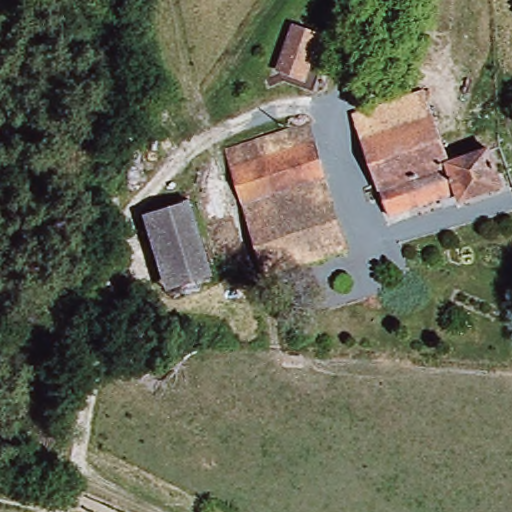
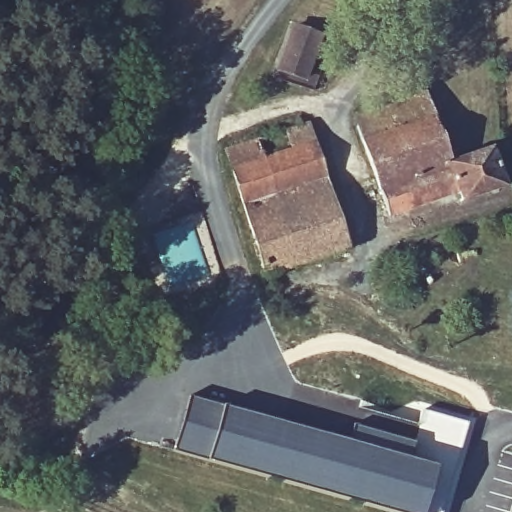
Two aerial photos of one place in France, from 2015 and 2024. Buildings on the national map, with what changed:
new [(302,81),(277,71),(294,24),(319,33),(302,81)]
unchanged [(366,112),(427,92),(438,122),(366,146),(361,130),(356,115),(366,112)]
unchanged [(225,149),(310,119),(349,241),(267,272),(225,149)]
unchanged [(366,146),(438,122),(453,162),(381,185),(366,146)]
unchanged [(453,162),(489,151),(500,186),(461,198),(460,193),(390,216),(381,185),(453,162)]
unchanged [(169,282),(145,215),(187,198),(203,242),(213,267),(206,269),(169,282)]
new [(346,441),(407,460),(434,468),(421,512),(376,512),(170,452),(188,395),(346,441)]
new [(421,407),(469,421),(462,450),(431,441),(433,433),(415,428),(421,407)]
new [(351,425),(412,443),(407,460),(346,441),(351,425)]
new [(407,460),(412,443),(415,428),(433,433),(431,441),(462,450),(461,454),(464,455),(448,512),(421,512),(434,468),(407,460)]

